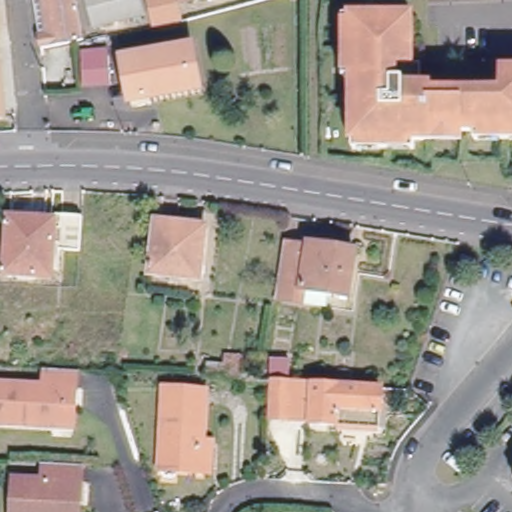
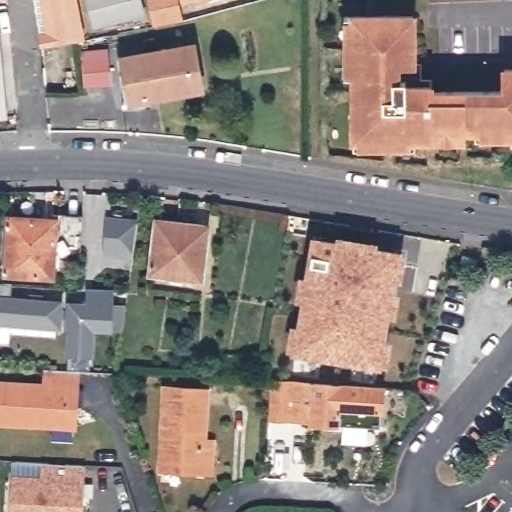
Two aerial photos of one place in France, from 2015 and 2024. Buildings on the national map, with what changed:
unchanged [(81,31),(70,34),(39,38),(38,28),(35,0),(75,0),(81,31)]
unchanged [(141,9),(92,20),(87,0),(138,0),(141,9)]
unchanged [(177,15),(150,20),(143,0),(172,0),(177,15)]
unchanged [(498,1),(427,1),(427,0),(498,0),(498,1)]
unchanged [(388,139),(356,139),(356,131),(354,70),(345,70),(345,39),(344,10),(352,10),(413,8),(413,54),(424,54),(425,69),(433,69),(433,79),(433,85),(505,82),(504,61),(512,61),(512,127),(511,127),(480,129),(480,120),(466,120),(466,129),(435,130),(417,130),(417,138),(388,139)]
unchanged [(0,40),(0,12),(2,40),(0,40)]
unchanged [(0,110),(0,40),(2,40),(8,109),(0,110)]
unchanged [(40,47),(44,47),(43,57),(41,56),(40,47)]
unchanged [(129,57),(191,49),(197,89),(135,98),(129,57)]
unchanged [(116,84),(86,86),(85,58),(115,55),(116,84)]
unchanged [(65,84),(65,77),(68,76),(67,72),(73,72),(73,75),(76,80),(76,82),(74,89),(68,88),(65,84)]
unchanged [(80,246),(54,244),(51,271),(6,268),(9,211),(55,215),(56,209),(82,210),(80,246)]
unchanged [(110,216),(137,220),(134,252),(106,250),(110,216)]
unchanged [(206,225),(200,276),(154,270),(160,220),(206,225)]
new [(408,252),(404,281),(396,280),(394,288),(401,290),(396,317),(392,315),(388,340),(393,341),(387,368),(285,350),(290,321),(297,323),(301,301),(294,298),(299,273),(305,275),(312,235),(408,252)]
demolished [(285,240),(358,250),(350,294),(278,283),(285,240)]
unchanged [(478,258),(474,267),(462,264),(465,255),(478,258)]
new [(13,295),(84,302),(84,282),(115,285),(114,331),(94,330),(92,357),(63,356),(65,330),(1,325),(1,342),(0,342),(0,285),(12,284),(13,295)]
unchanged [(0,424),(0,382),(43,383),(44,367),(75,368),(74,388),(72,427),(29,425),(0,424)]
unchanged [(324,430),(324,423),(297,421),(297,417),(276,416),(277,380),(368,385),(365,425),(365,432),(324,430)]
unchanged [(211,473),(201,472),(161,470),(164,385),(204,387),(203,437),(214,437),(211,473)]
unchanged [(44,478),(45,462),(81,465),(80,480),(79,512),(13,512),(14,477),(44,478)]

